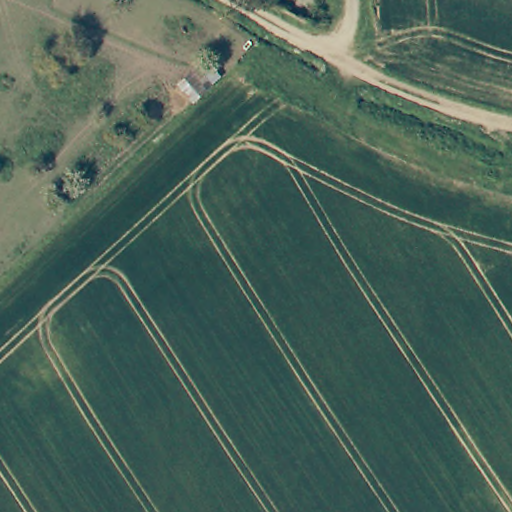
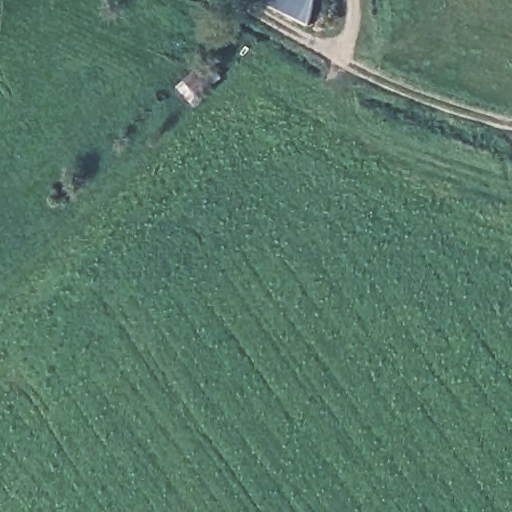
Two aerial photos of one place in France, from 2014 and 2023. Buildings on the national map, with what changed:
new [(263,0),(312,0),(308,23),(263,0)]
unchanged [(177,89),(198,71),(211,85),(192,105),(177,89)]

